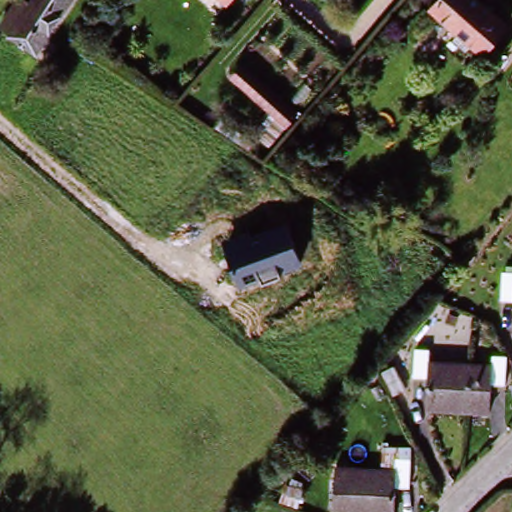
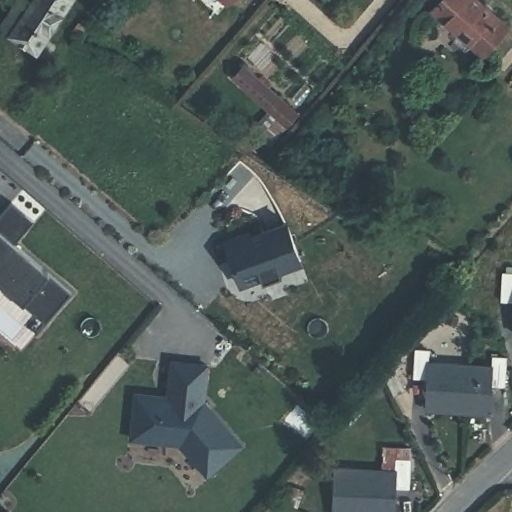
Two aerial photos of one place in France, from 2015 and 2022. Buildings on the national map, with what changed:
unchanged [(40,49),(0,25),(15,0),(71,0),(40,49)]
unchanged [(232,1),(231,0),(232,0),(232,1)]
unchanged [(479,52),(430,10),(438,0),(475,0),(503,25),(479,52)]
unchanged [(265,128),(221,92),(234,76),(278,114),(265,128)]
new [(32,222),(12,246),(0,236),(0,212),(10,202),(32,222)]
unchanged [(290,223),(301,265),(238,286),(225,242),(290,223)]
demolished [(401,255),(414,234),(434,248),(421,268),(401,255)]
new [(72,298),(43,330),(20,310),(23,305),(0,285),(0,235),(72,298)]
unchanged [(503,273),(512,273),(512,301),(502,301),(503,273)]
unchanged [(470,410),(427,409),(428,377),(415,376),(415,349),(430,350),(430,361),(472,364),(490,365),(493,355),(505,357),(505,383),(490,381),(489,411),(470,410)]
new [(170,395),(173,357),(210,361),(207,398),(246,445),(210,476),(182,443),(131,438),(135,391),(170,395)]
unchanged [(394,366),(405,386),(391,393),(380,371),(394,366)]
unchanged [(395,470),(396,458),(397,444),(411,445),(410,458),(410,486),(394,486),(393,512),(332,512),(334,467),(395,470)]

